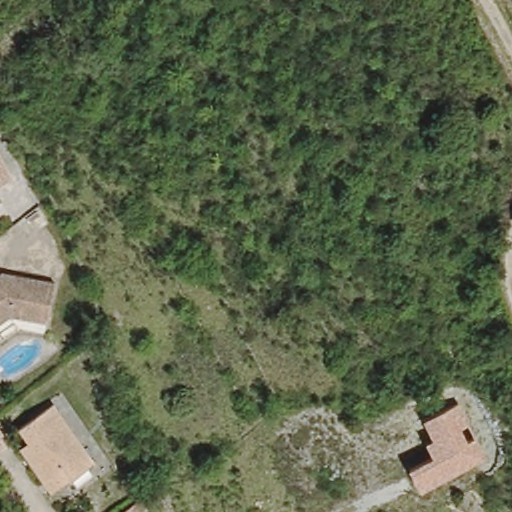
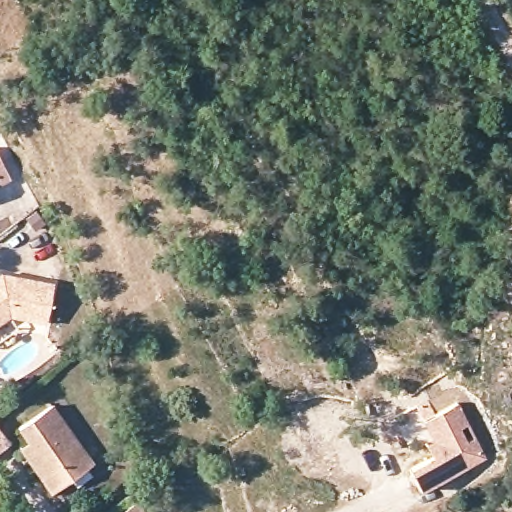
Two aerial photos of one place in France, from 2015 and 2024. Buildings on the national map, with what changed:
unchanged [(0,182),(0,160),(9,177),(0,182)]
unchanged [(0,279),(1,278),(49,289),(38,326),(5,320),(0,323),(0,279)]
unchanged [(22,420),(53,397),(93,456),(52,487),(39,468),(20,442),(32,433),(22,420)]
unchanged [(490,455),(426,491),(413,469),(440,456),(425,421),(461,402),(490,455)]
unchanged [(0,452),(0,446),(3,450),(0,452)]

